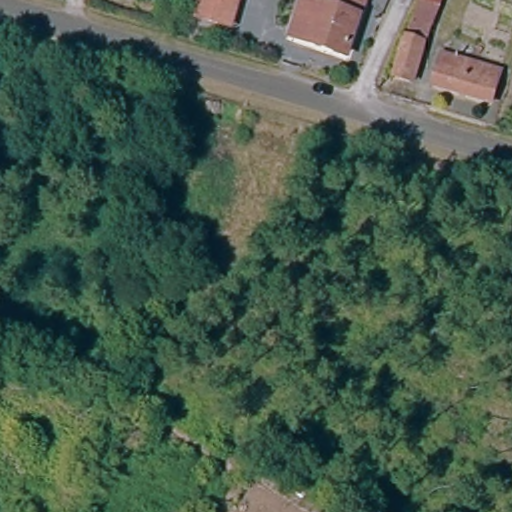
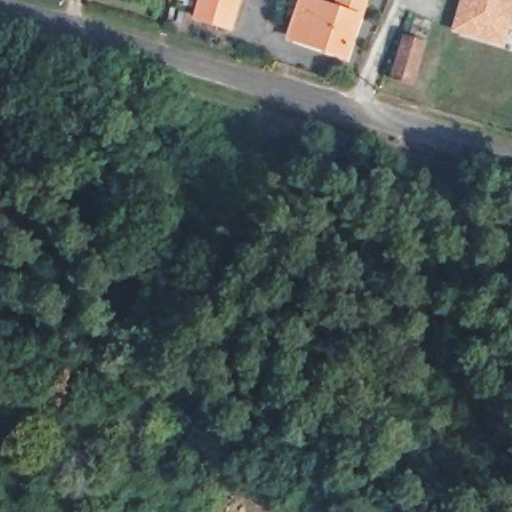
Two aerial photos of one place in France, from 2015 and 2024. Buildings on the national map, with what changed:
unchanged [(196,21),(203,0),(238,0),(228,31),(196,21)]
unchanged [(342,61),(280,36),(293,3),(318,13),(319,8),(335,15),(341,0),(361,0),(366,2),(342,61)]
new [(511,27),(505,47),(451,32),(461,0),(512,0),(512,27),(511,27)]
unchanged [(0,55),(0,32),(13,36),(6,57),(0,55)]
demolished [(491,101),(432,87),(439,55),(499,69),(491,101)]

